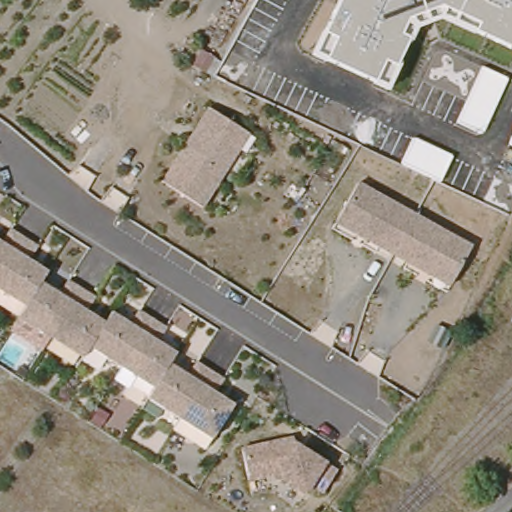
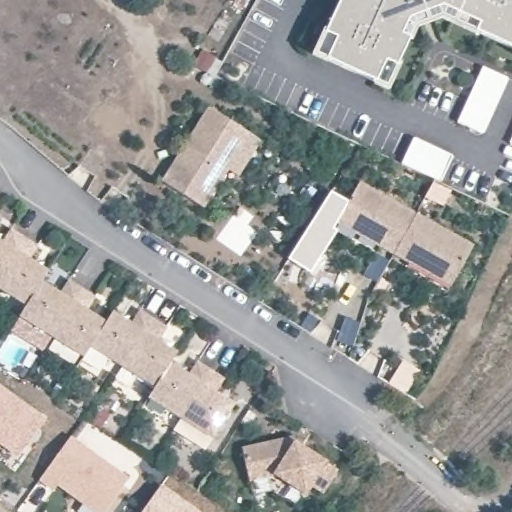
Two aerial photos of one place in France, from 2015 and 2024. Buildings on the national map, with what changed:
demolished [(269,20),(261,17),(254,31),(243,26),(257,0),(280,0),(269,20)]
unchanged [(417,29),(389,89),(311,55),(337,0),(512,0),(512,49),(442,19),(417,29)]
unchanged [(482,133),(456,120),(481,67),(509,80),(482,133)]
unchanged [(251,136),(207,210),(162,183),(209,108),(251,136)]
unchanged [(512,136),(512,142),(510,141),(512,136)]
unchanged [(442,182),(402,164),(414,138),(453,157),(442,182)]
unchanged [(362,184),(474,247),(452,285),(336,227),(362,184)]
unchanged [(50,270),(43,284),(105,320),(113,311),(184,357),(179,366),(235,401),(211,437),(147,404),(150,396),(89,359),(83,367),(13,326),(20,311),(0,299),(0,240),(50,270)]
new [(45,417),(17,458),(0,447),(0,386),(45,417)]
new [(129,477),(104,512),(90,512),(56,487),(53,491),(37,481),(69,436),(129,477)]
unchanged [(293,442),(329,467),(303,506),(271,487),(251,494),(237,450),(293,442)]
new [(225,511),(224,512),(140,512),(170,473),(225,511)]

